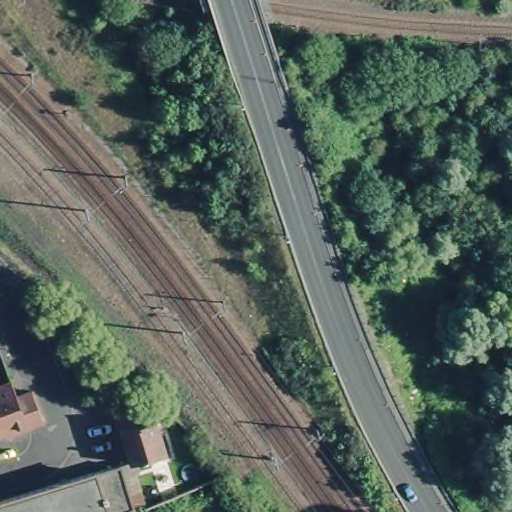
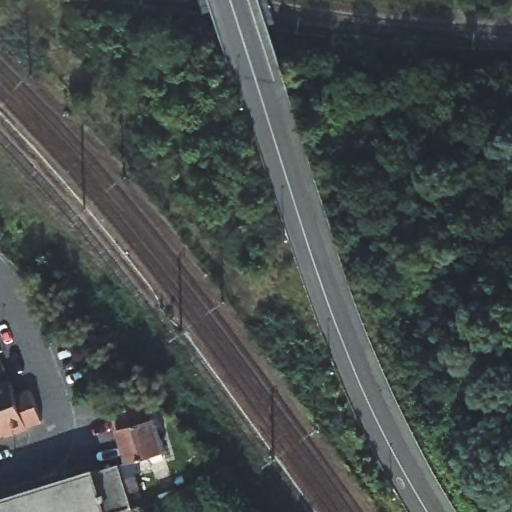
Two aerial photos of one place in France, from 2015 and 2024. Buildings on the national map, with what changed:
unchanged [(9,379),(15,394),(18,393),(31,389),(40,419),(25,424),(27,429),(8,436),(5,429),(0,427),(0,381),(9,379)]
unchanged [(112,416),(138,406),(152,402),(153,402),(157,407),(144,411),(154,421),(163,453),(130,463),(126,464),(112,416)]
unchanged [(35,491),(126,464),(130,463),(142,506),(121,512),(0,512),(0,502),(35,491)]

